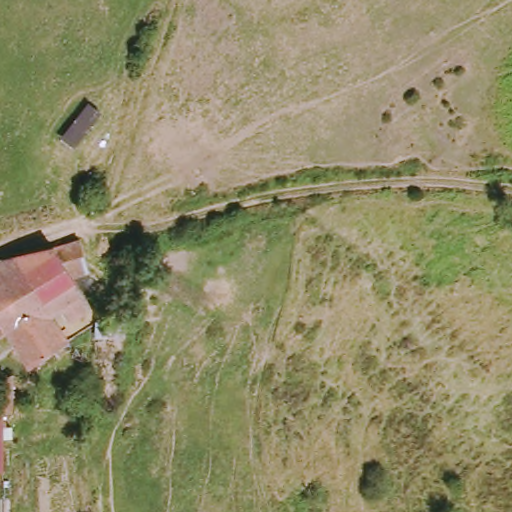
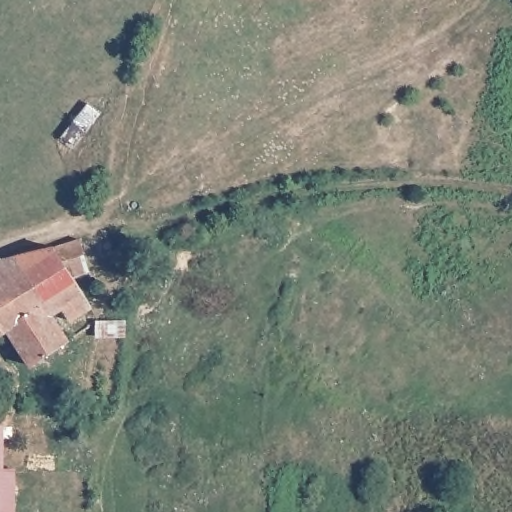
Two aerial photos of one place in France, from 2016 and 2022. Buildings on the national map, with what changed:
unchanged [(78,322),(71,310),(60,315),(78,341),(36,362),(12,328),(0,335),(0,263),(20,256),(61,245),(84,240),(102,263),(80,275),(100,308),(78,322)]
unchanged [(128,337),(102,337),(102,322),(130,318),(128,337)]
unchanged [(13,376),(10,410),(0,410),(0,381),(13,376)]
new [(4,418),(4,467),(16,467),(16,512),(0,512),(0,419),(4,418)]

